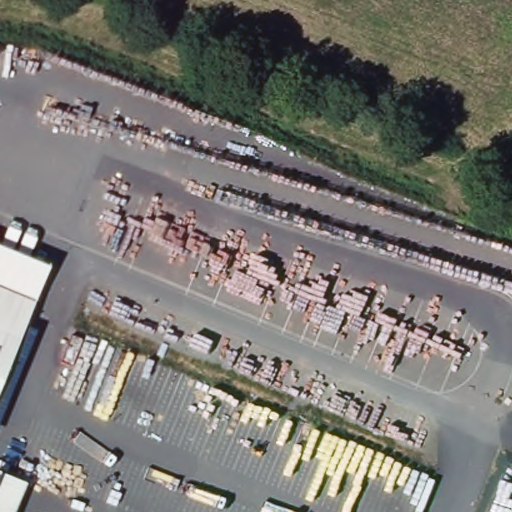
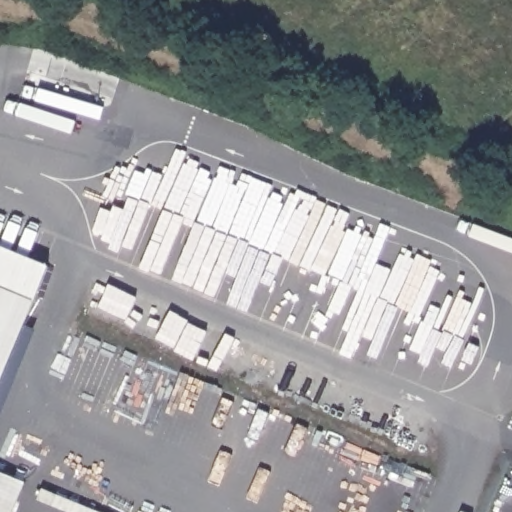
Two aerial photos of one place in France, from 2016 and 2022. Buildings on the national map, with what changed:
unchanged [(0,399),(0,242),(51,263),(0,399)]
unchanged [(25,483),(13,512),(0,512),(0,473),(25,483)]

